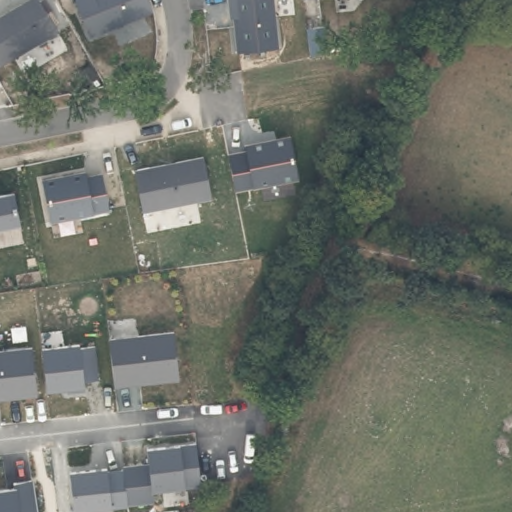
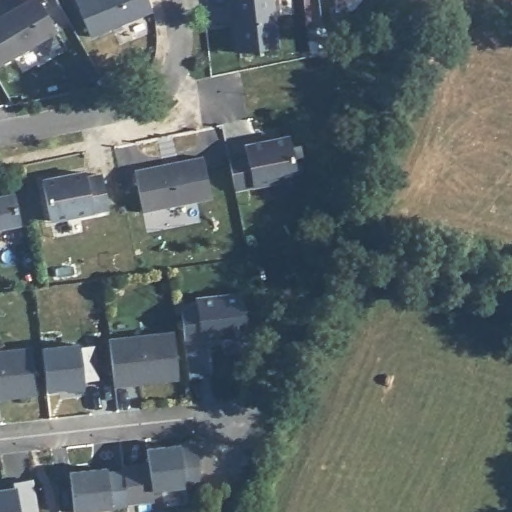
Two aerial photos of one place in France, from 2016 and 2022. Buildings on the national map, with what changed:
unchanged [(0,69),(0,16),(28,0),(36,0),(58,34),(0,69)]
unchanged [(77,0),(148,0),(153,12),(91,36),(77,0)]
unchanged [(233,10),(228,10),(227,0),(273,0),(277,49),(236,52),(233,10)]
unchanged [(235,191),(228,154),(246,150),(244,144),(288,136),(297,180),(235,191)]
unchanged [(143,212),(135,169),(202,156),(211,197),(143,212)]
unchanged [(48,224),(41,181),(86,174),(86,179),(101,176),(108,212),(48,224)]
unchanged [(0,196),(13,193),(20,225),(0,229),(0,196)]
new [(196,300),(195,295),(243,290),(248,335),(201,340),(205,376),(190,378),(179,303),(196,300)]
unchanged [(115,386),(111,338),(173,331),(177,380),(115,386)]
unchanged [(82,381),(82,387),(46,390),(43,348),(95,345),(97,379),(82,381)]
unchanged [(0,398),(0,351),(30,347),(35,393),(0,398)]
unchanged [(151,490),(153,503),(73,511),(69,471),(149,462),(149,448),(193,443),(198,485),(151,490)]
unchanged [(13,482),(32,480),(36,512),(0,512),(0,488),(13,486),(13,482)]

